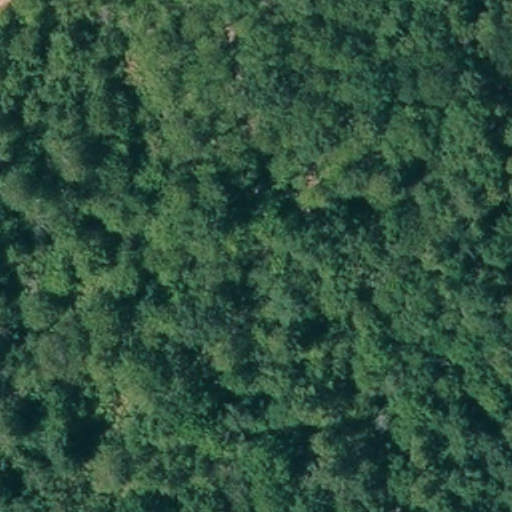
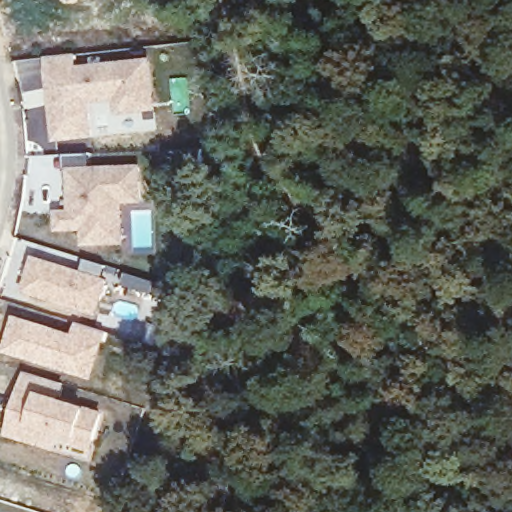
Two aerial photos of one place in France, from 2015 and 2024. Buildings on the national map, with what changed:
new [(53,141),(45,58),(76,54),(78,66),(152,59),(157,111),(115,116),(114,101),(91,105),(94,137),(53,141)]
new [(83,246),(82,231),(55,232),(54,211),(67,209),(67,168),(64,154),(90,153),(91,167),(143,165),(143,204),(126,205),(125,247),(83,246)]
new [(33,255),(81,270),(85,259),(120,269),(116,280),(109,279),(95,317),(21,292),(33,255)]
new [(13,314),(72,332),(76,322),(108,331),(91,380),(1,352),(13,314)]
new [(25,371),(67,383),(63,398),(104,411),(90,452),(57,439),(53,448),(5,435),(25,371)]

